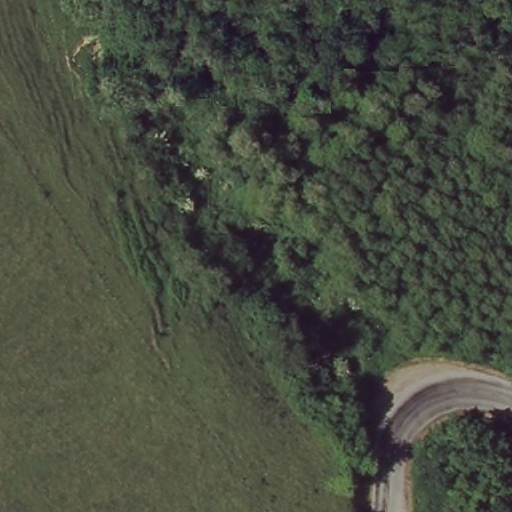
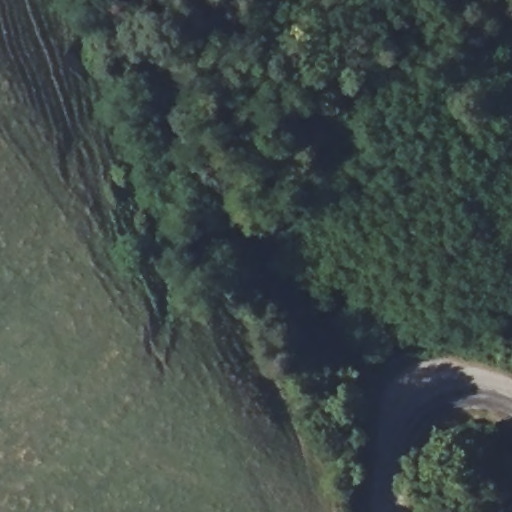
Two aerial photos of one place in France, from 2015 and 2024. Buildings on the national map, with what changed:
[]

